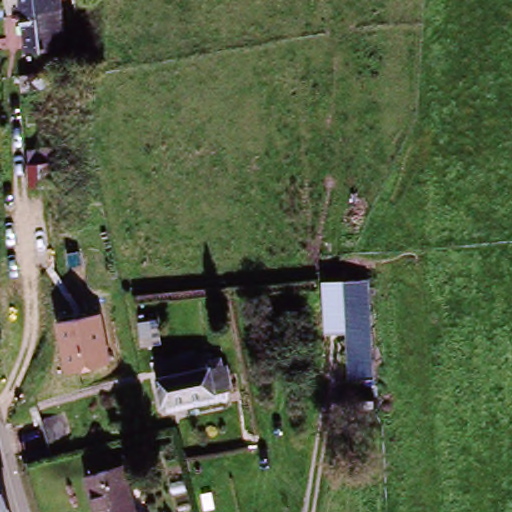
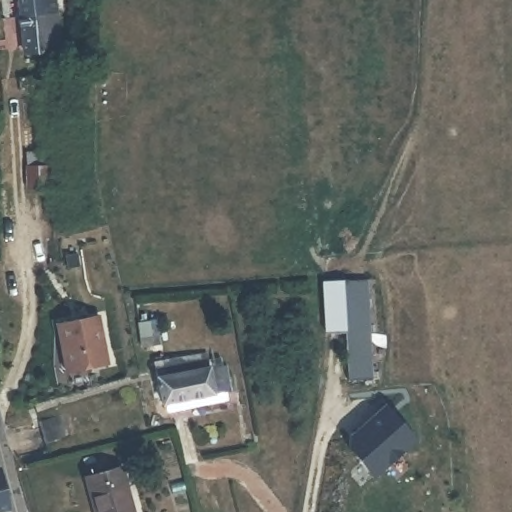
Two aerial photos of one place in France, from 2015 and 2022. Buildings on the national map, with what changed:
unchanged [(56,16),(20,20),(19,0),(54,0),(56,16)]
unchanged [(56,16),(59,47),(23,51),(20,20),(56,16)]
unchanged [(32,93),(21,93),(21,76),(31,75),(32,93)]
unchanged [(46,153),(48,186),(28,187),(26,154),(46,153)]
unchanged [(373,392),(360,392),(360,383),(347,383),(346,283),(371,283),(373,392)]
unchanged [(102,316),(110,365),(65,375),(57,323),(102,316)]
unchanged [(205,362),(206,375),(224,372),(228,397),(160,409),(154,371),(205,362)]
new [(352,435),(390,402),(417,433),(376,471),(352,445),(352,435)]
unchanged [(74,437),(43,443),(41,436),(37,418),(68,411),(73,432),(74,437)]
unchanged [(133,512),(94,512),(85,478),(123,470),(133,512)]
unchanged [(4,512),(0,512),(0,497),(3,510),(4,512)]

